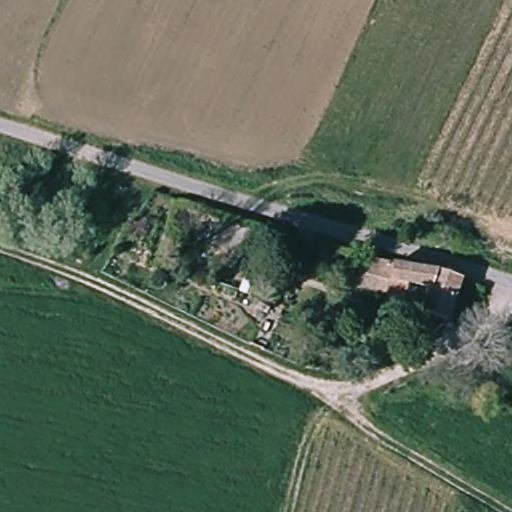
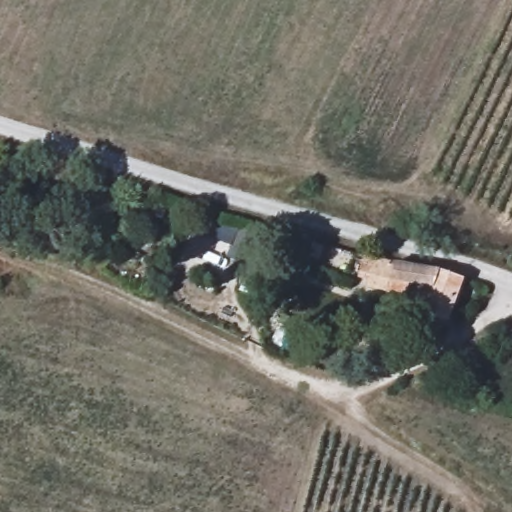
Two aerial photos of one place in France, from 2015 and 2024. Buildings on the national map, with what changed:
unchanged [(266,230),(270,224),(290,230),(283,244),(272,241),(266,257),(242,250),(249,224),(266,230)]
unchanged [(451,320),(427,312),(433,293),(396,280),(389,295),(363,286),(365,278),(360,277),(367,257),(378,261),(438,271),(468,282),(451,320)]

